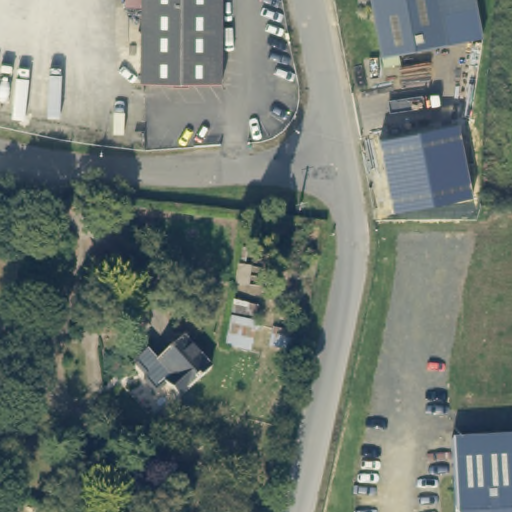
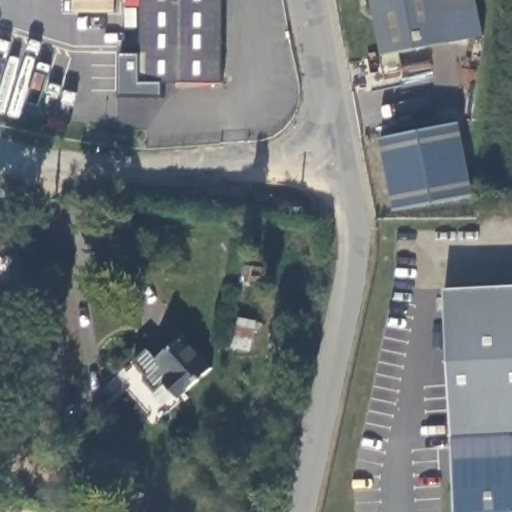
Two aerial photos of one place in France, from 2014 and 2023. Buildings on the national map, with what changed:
unchanged [(223,83),(142,82),(142,0),(223,0),(223,83)]
unchanged [(448,45),(382,57),(371,0),(439,0),(442,15),(448,45)]
unchanged [(482,37),(448,45),(442,15),(439,0),(475,0),(482,37)]
unchanged [(473,197),(394,212),(380,139),(458,123),(473,197)]
new [(445,291),(512,287),(512,432),(451,436),(445,291)]
unchanged [(260,323),(255,352),(230,347),(236,318),(260,323)]
unchanged [(300,352),(270,345),(274,328),(304,336),(300,352)]
unchanged [(151,375),(142,365),(142,358),(153,349),(163,360),(188,337),(217,369),(184,399),(170,383),(161,392),(151,382),(151,375)]
unchanged [(512,512),(455,512),(451,436),(512,432),(512,512)]

